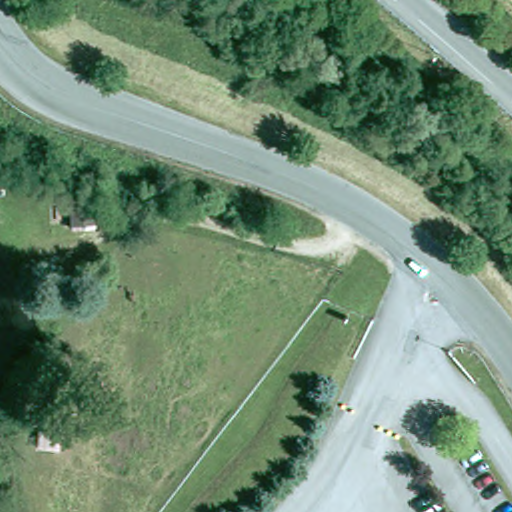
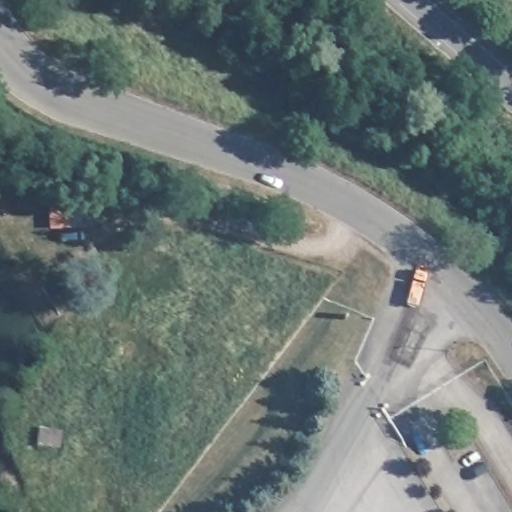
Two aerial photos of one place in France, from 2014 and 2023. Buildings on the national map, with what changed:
unchanged [(93,198),(100,230),(70,235),(70,202),(93,198)]

